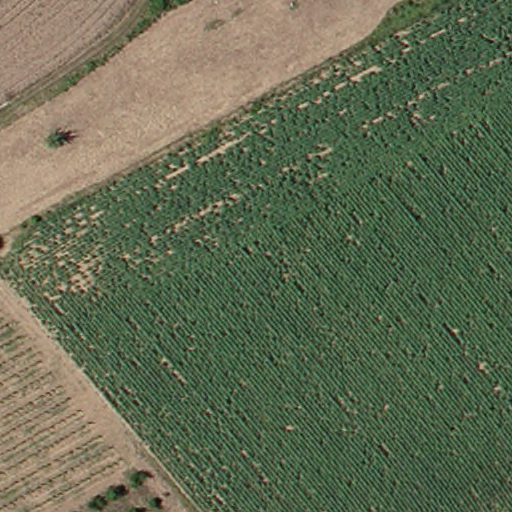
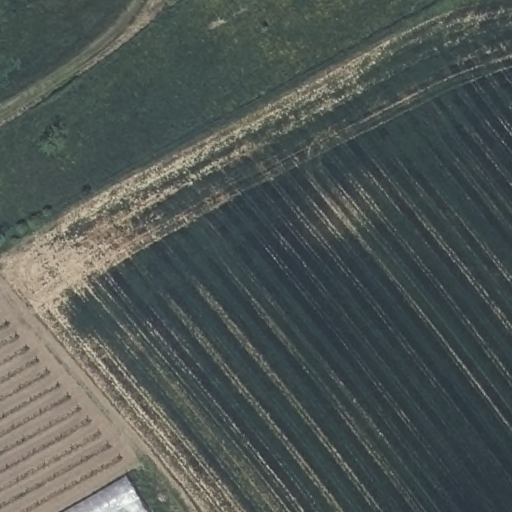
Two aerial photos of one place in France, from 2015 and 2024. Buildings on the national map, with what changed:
new [(126,476),(147,512),(62,512),(126,476)]

